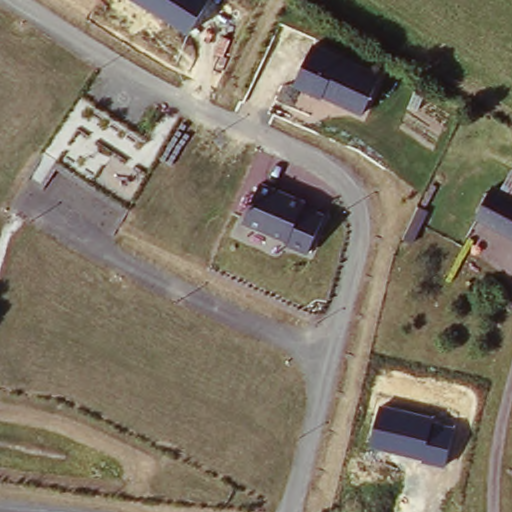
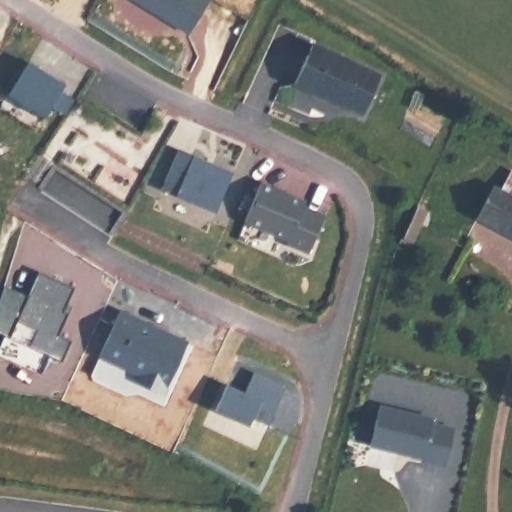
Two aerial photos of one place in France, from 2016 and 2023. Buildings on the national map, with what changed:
unchanged [(187,34),(133,0),(208,0),(187,34)]
unchanged [(364,114),(323,95),(322,98),(295,85),(313,41),(342,55),(340,58),(378,78),(364,114)]
new [(27,64),(65,87),(61,92),(75,100),(66,115),(52,107),(44,120),(7,97),(27,64)]
new [(162,185),(179,146),(232,169),(215,209),(162,185)]
unchanged [(512,194),(502,188),(512,169),(512,194)]
unchanged [(309,255),(285,244),(287,240),(244,222),(260,179),(307,199),(305,204),(327,214),(309,255)]
unchanged [(496,184),(502,188),(512,194),(512,236),(479,217),(496,184)]
unchanged [(431,212),(415,245),(407,240),(422,207),(431,212)]
new [(62,358),(49,353),(41,373),(0,354),(0,347),(6,334),(0,331),(0,301),(4,286),(27,297),(37,269),(72,285),(62,309),(67,312),(57,333),(69,340),(62,358)]
new [(165,395),(139,381),(140,375),(100,356),(120,309),(187,340),(165,395)]
new [(254,414),(250,422),(216,407),(227,381),(245,389),(255,368),(287,383),(269,421),(254,414)]
unchanged [(447,466),(423,461),(423,457),(371,445),(379,405),(434,416),(433,423),(456,428),(447,466)]

